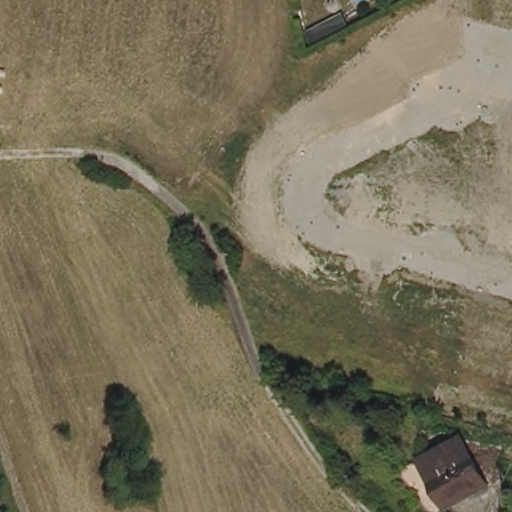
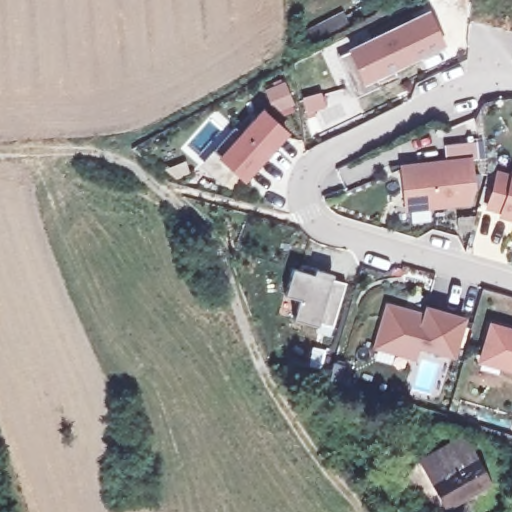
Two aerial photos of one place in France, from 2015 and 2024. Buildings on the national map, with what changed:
new [(434,9),(449,41),(400,64),(405,74),(363,94),(357,81),(344,52),(357,46),(434,9)]
new [(284,80),(292,103),(274,110),(265,87),(284,80)]
new [(247,130),(267,107),(292,130),(280,144),(275,150),(251,176),(242,168),(232,178),(209,157),(240,123),(247,130)]
new [(446,161),(444,143),(476,140),(477,157),(470,157),(472,186),(469,200),(468,202),(406,208),(401,165),(446,161)]
new [(486,191),(490,172),(505,176),(507,168),(512,169),(512,217),(495,212),(496,208),(482,205),(486,191)]
new [(289,268),(297,271),(299,265),(330,275),(329,280),(343,284),(331,329),(315,324),(314,327),(290,320),(296,300),(281,296),(289,268)]
new [(383,303),(404,308),(412,311),(421,313),(423,306),(459,317),(449,352),(414,342),(410,355),(390,349),(371,344),(374,333),(383,303)]
new [(477,362),(490,321),(512,327),(512,372),(477,362)]
unchanged [(410,460),(462,433),(492,490),(446,512),(438,512),(410,460)]

